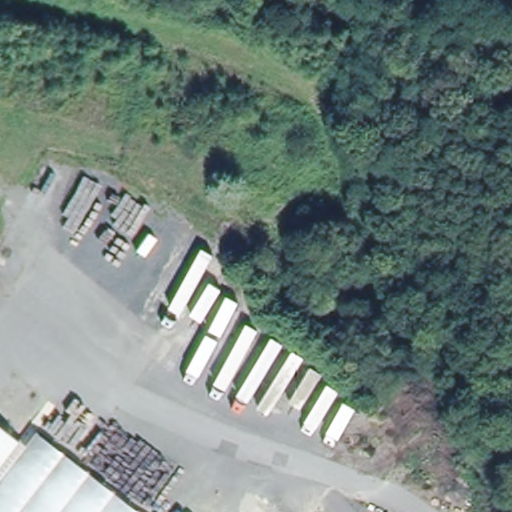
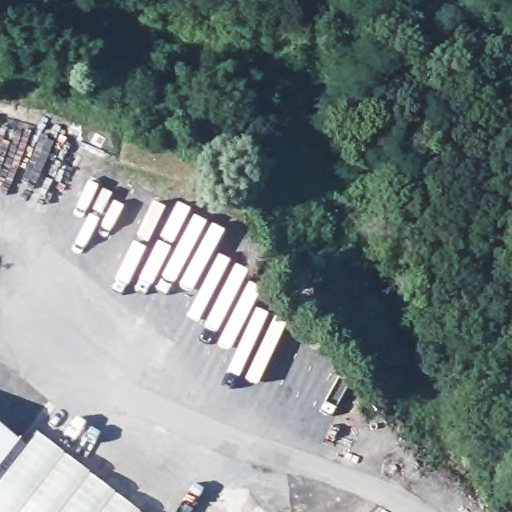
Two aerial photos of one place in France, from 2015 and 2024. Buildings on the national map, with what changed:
unchanged [(0,466),(0,428),(19,442),(0,466)]
unchanged [(29,429),(136,512),(0,512),(0,466),(19,442),(29,429)]

